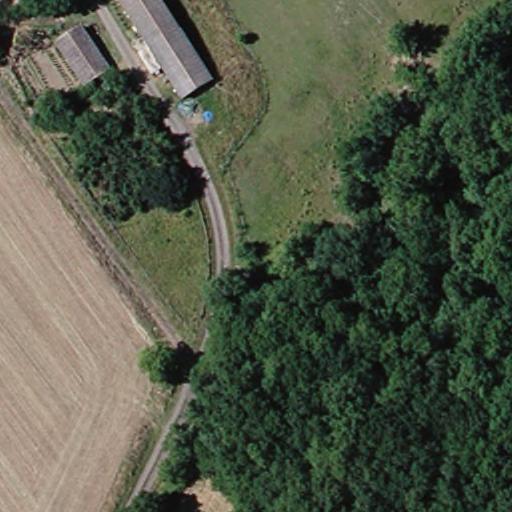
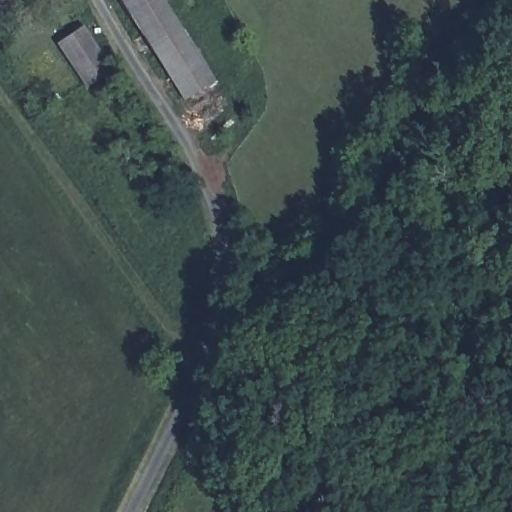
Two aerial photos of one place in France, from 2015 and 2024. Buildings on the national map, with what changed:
unchanged [(8,4),(6,0),(13,0),(8,4)]
unchanged [(205,97),(133,0),(169,0),(226,82),(205,97)]
unchanged [(95,85),(70,44),(96,27),(121,69),(95,85)]

